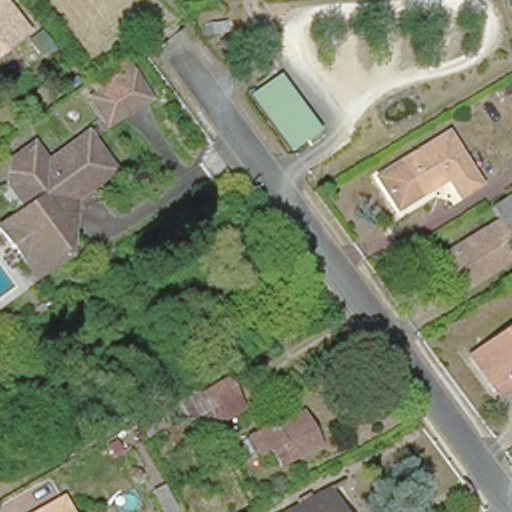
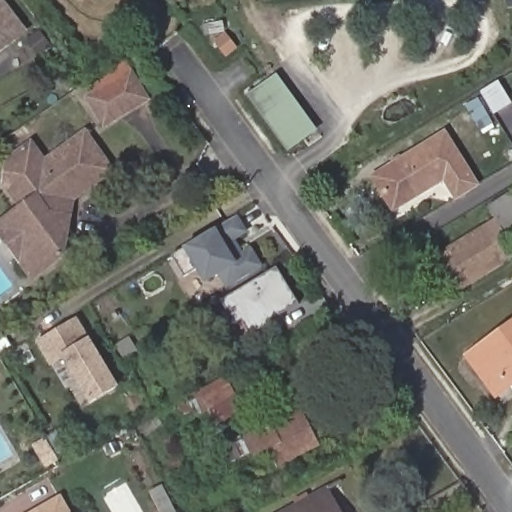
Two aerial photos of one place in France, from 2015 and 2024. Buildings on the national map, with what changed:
unchanged [(0,51),(0,5),(22,33),(0,51)]
unchanged [(222,30),(224,39),(215,41),(213,31),(222,30)]
unchanged [(236,54),(229,59),(221,49),(228,43),(236,54)]
unchanged [(152,107),(112,133),(94,107),(84,92),(123,66),(134,81),(152,107)]
unchanged [(290,153),(266,118),(251,97),(265,87),(274,80),(289,101),(313,136),(290,153)]
unchanged [(389,210),(370,178),(441,135),(472,186),(452,198),(440,180),(389,210)]
unchanged [(35,155),(48,174),(60,166),(90,146),(115,183),(84,203),(73,210),(69,212),(66,226),(71,227),(63,260),(29,281),(0,237),(0,231),(25,214),(9,191),(21,183),(13,170),(35,155)]
unchanged [(488,208),(512,194),(512,236),(508,238),(488,208)]
new [(171,256),(183,249),(182,247),(215,227),(216,229),(238,216),(248,234),(236,241),(243,253),(251,247),(263,266),(225,289),(218,277),(204,285),(196,271),(184,277),(171,256)]
unchanged [(482,229),(503,264),(456,292),(434,258),(482,229)]
new [(270,320),(271,324),(251,336),(242,321),(236,325),(222,301),(277,268),(299,304),(270,320)]
new [(36,342),(77,318),(88,337),(119,388),(89,406),(63,360),(50,367),(36,342)]
unchanged [(512,385),(498,395),(469,357),(512,327),(512,385)]
unchanged [(200,419),(194,409),(189,401),(214,387),(225,406),(222,407),(200,419)]
unchanged [(222,448),(244,436),(243,434),(295,408),(312,442),(274,462),(266,444),(251,451),(251,449),(229,461),(222,448)]
demolished [(4,478),(0,471),(0,455),(14,447),(16,451),(36,440),(44,454),(4,478)]
unchanged [(331,507),(334,512),(285,512),(323,491),(331,507)]
unchanged [(159,512),(153,501),(165,494),(175,512),(159,512)]
unchanged [(67,512),(35,512),(59,498),(67,512)]

